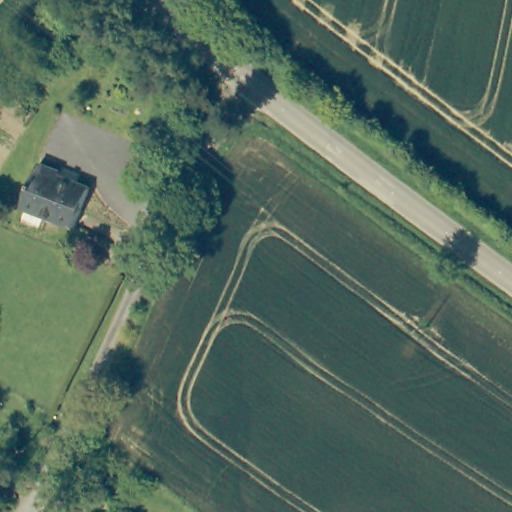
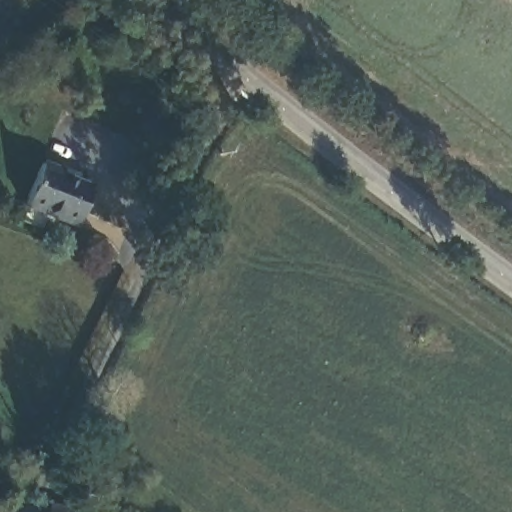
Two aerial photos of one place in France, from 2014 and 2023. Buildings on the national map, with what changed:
unchanged [(63,171),(61,176),(89,186),(75,224),(27,207),(42,164),(63,171)]
unchanged [(0,482),(0,477),(2,477),(0,482)]
unchanged [(43,512),(44,508),(70,512),(43,512)]

